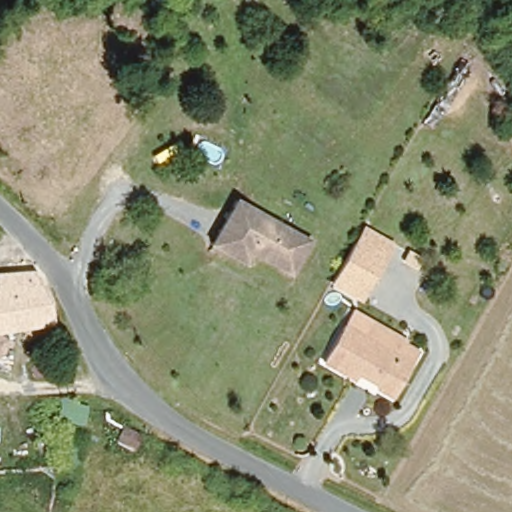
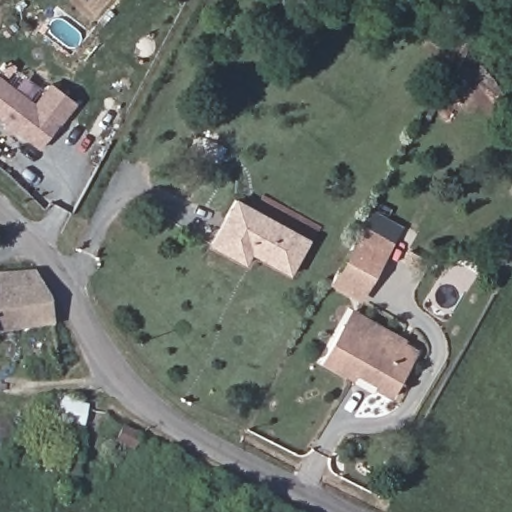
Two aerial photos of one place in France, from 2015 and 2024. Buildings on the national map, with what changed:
new [(14,130),(10,135),(3,130),(6,124),(0,119),(0,74),(35,101),(51,82),(78,103),(39,149),(14,130)]
unchanged [(253,253),(247,264),(213,244),(239,200),(311,241),(292,275),(253,253)]
unchanged [(333,279),(359,232),(389,249),(363,295),(333,279)]
unchanged [(0,273),(34,269),(54,299),(55,322),(0,331),(0,273)]
unchanged [(395,350),(401,339),(419,349),(391,398),(324,361),(346,322),(395,350)]
unchanged [(129,452),(113,443),(121,428),(139,438),(129,452)]

